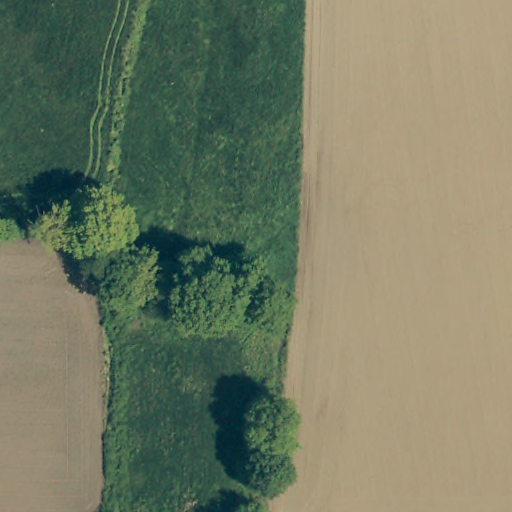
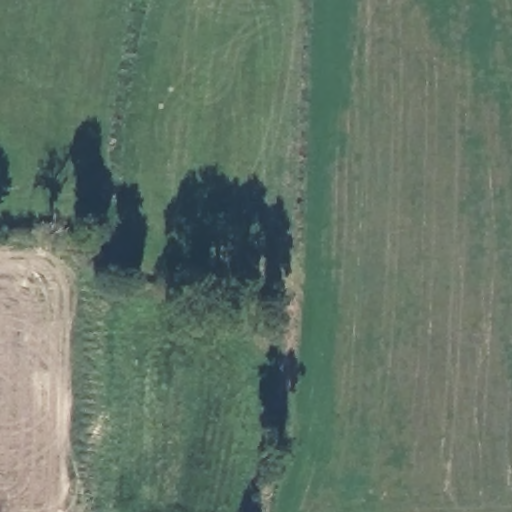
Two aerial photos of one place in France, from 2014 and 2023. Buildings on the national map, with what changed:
[]

